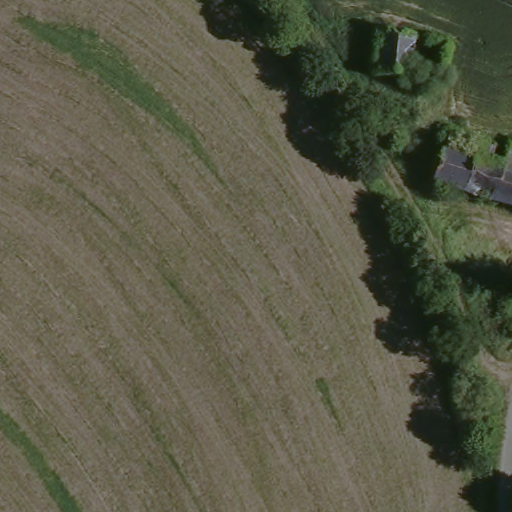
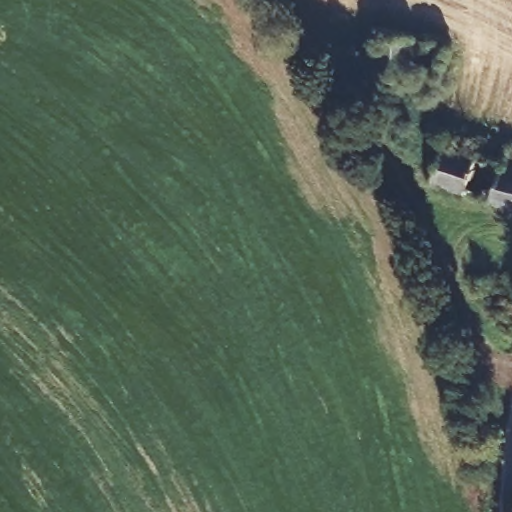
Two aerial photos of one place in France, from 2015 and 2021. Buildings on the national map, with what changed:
unchanged [(376,31),(393,34),(413,37),(408,72),(370,67),(376,31)]
unchanged [(413,37),(444,41),(439,77),(435,76),(408,72),(413,37)]
unchanged [(491,196),(468,190),(438,180),(450,144),(481,152),(483,141),(484,137),(498,141),(494,157),(503,160),(510,140),(512,141),(512,203),(493,197),(491,196)]

